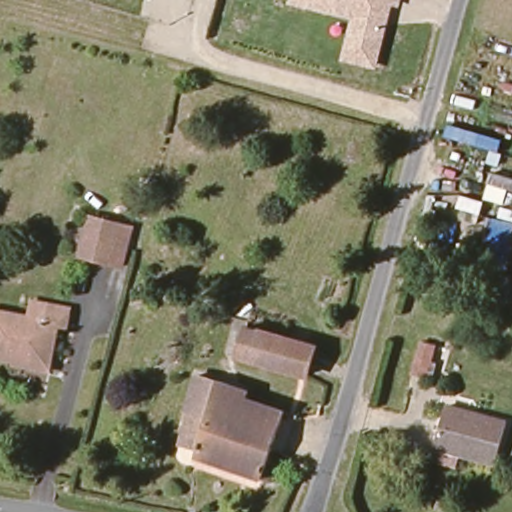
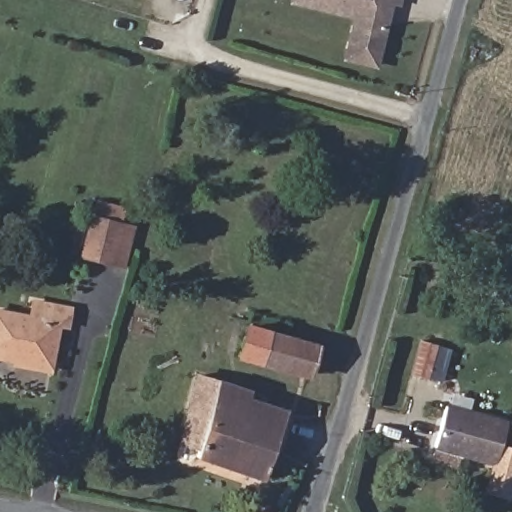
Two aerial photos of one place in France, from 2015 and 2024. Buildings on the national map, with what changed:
unchanged [(289,0),(400,0),(399,6),(393,6),(377,69),(341,60),(350,19),(288,4),(289,0)]
unchanged [(92,263),(101,225),(129,233),(120,270),(92,263)]
unchanged [(511,264),(512,259),(512,264),(511,264)]
unchanged [(0,364),(0,316),(36,322),(38,308),(74,314),(71,333),(62,331),(55,367),(53,379),(17,371),(17,367),(0,364)]
unchanged [(311,381),(264,367),(241,360),(250,331),(275,338),(320,350),(311,381)]
unchanged [(426,376),(413,374),(421,343),(434,346),(426,376)]
unchanged [(189,413),(187,413),(198,378),(219,385),(220,382),(246,390),(245,398),(285,411),(264,478),(193,456),(195,450),(178,444),(184,425),(189,413)]
unchanged [(435,466),(438,454),(449,415),(487,426),(491,411),(512,418),(512,422),(499,471),(464,461),(460,473),(435,466)]

